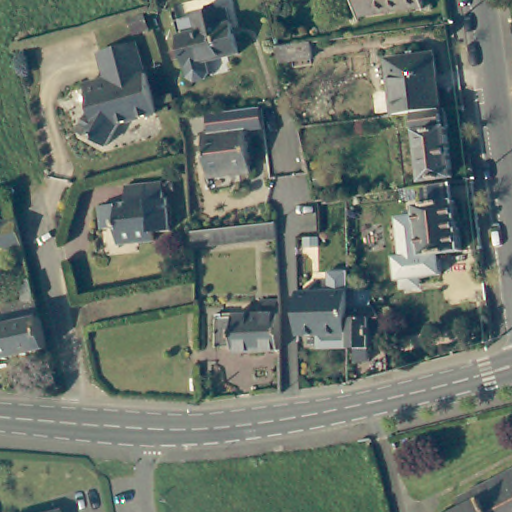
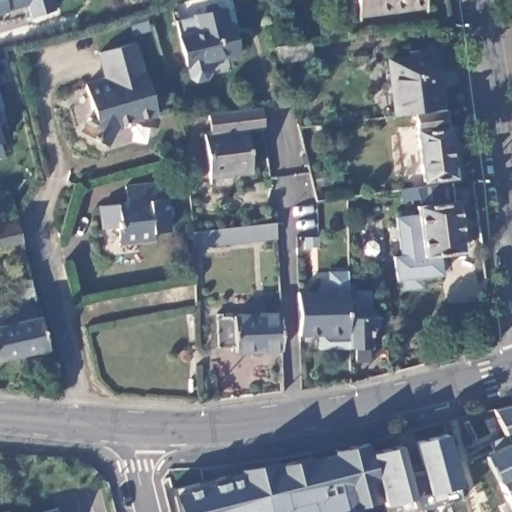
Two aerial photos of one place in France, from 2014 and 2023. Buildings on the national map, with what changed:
new [(54,11),(31,18),(28,9),(0,18),(0,0),(51,0),(54,11)]
unchanged [(427,6),(423,7),(422,3),(360,10),(360,14),(356,15),(354,0),(426,0),(427,6)]
unchanged [(225,27),(231,26),(237,54),(206,62),(209,73),(205,80),(196,82),(189,77),(175,22),(222,12),(225,27)]
unchanged [(310,37),(312,53),(280,57),(276,42),(310,37)]
unchanged [(142,70),(145,70),(155,110),(115,120),(106,144),(80,134),(91,108),(85,84),(105,79),(110,83),(113,78),(105,73),(100,51),(136,40),(142,70)]
unchanged [(417,112),(402,114),(396,61),(443,54),(449,108),(417,112)]
new [(6,110),(0,112),(0,92),(6,110)]
unchanged [(210,133),(207,115),(263,107),(266,129),(251,128),(210,133)]
unchanged [(451,125),(450,127),(457,174),(426,178),(417,112),(449,108),(451,125)]
new [(0,143),(0,126),(5,141),(0,143)]
unchanged [(256,170),(214,176),(208,134),(251,128),(256,170)]
unchanged [(456,199),(459,199),(466,250),(446,253),(448,270),(401,277),(397,253),(405,252),(400,214),(421,211),(420,203),(422,203),(421,197),(402,200),(400,188),(454,180),(456,199)]
unchanged [(165,202),(167,202),(167,233),(152,234),(152,242),(121,242),(121,228),(102,227),(102,203),(128,202),(129,187),(166,187),(165,202)]
unchanged [(0,251),(0,221),(18,216),(25,245),(0,251)]
unchanged [(190,240),(190,239),(189,225),(254,220),(275,218),(276,234),(190,240)]
unchanged [(332,294),(332,275),(350,274),(350,289),(350,294),(351,337),(351,349),(351,352),(322,352),(323,337),(302,337),(302,316),(301,294),(332,294)]
unchanged [(372,304),(384,318),(373,318),(374,348),(371,349),(371,361),(357,361),(357,349),(351,349),(351,337),(350,294),(350,289),(371,289),(372,304)]
unchanged [(244,352),(243,349),(227,349),(227,319),(243,319),(243,316),(270,316),(270,301),(289,301),(290,351),(244,352)]
new [(49,348),(0,360),(0,325),(39,315),(49,348)]
demolished [(3,358),(0,351),(0,328),(40,320),(51,349),(3,358)]
new [(508,503),(498,482),(487,454),(494,451),(510,441),(493,408),(512,404),(512,512),(502,512),(500,507),(508,503)]
new [(409,512),(385,512),(382,499),(370,453),(442,434),(458,499),(409,512)]
new [(349,512),(177,512),(171,488),(367,442),(370,453),(382,499),(349,512)]
demolished [(459,505),(467,499),(512,476),(512,512),(459,512),(458,509),(459,505)]
unchanged [(54,512),(41,512),(54,509),(54,512)]

